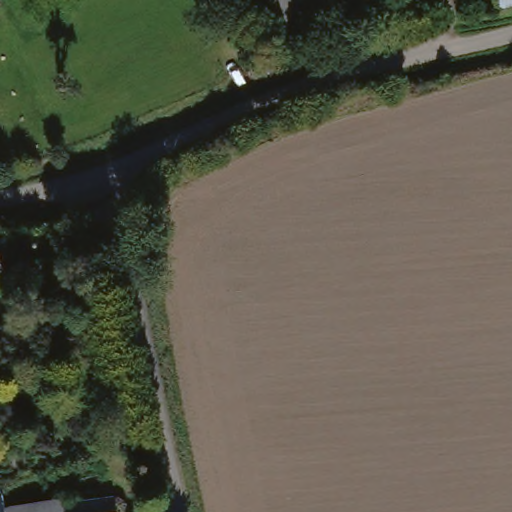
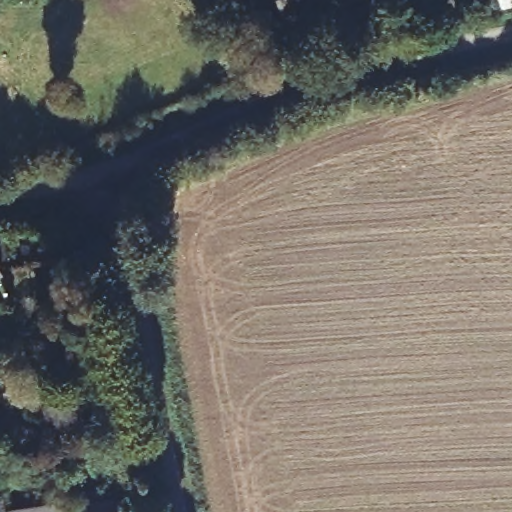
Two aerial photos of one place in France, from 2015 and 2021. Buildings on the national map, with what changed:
unchanged [(291,27),(282,0),(370,0),(371,2),(291,27)]
unchanged [(512,5),(493,9),(491,0),(512,0),(512,5)]
unchanged [(3,266),(0,267),(0,260),(3,266)]
unchanged [(16,495),(18,512),(0,512),(0,480),(12,477),(16,495)]
unchanged [(61,507),(62,512),(18,512),(16,495),(53,487),(61,507)]
unchanged [(113,512),(62,512),(61,507),(111,498),(113,512)]

